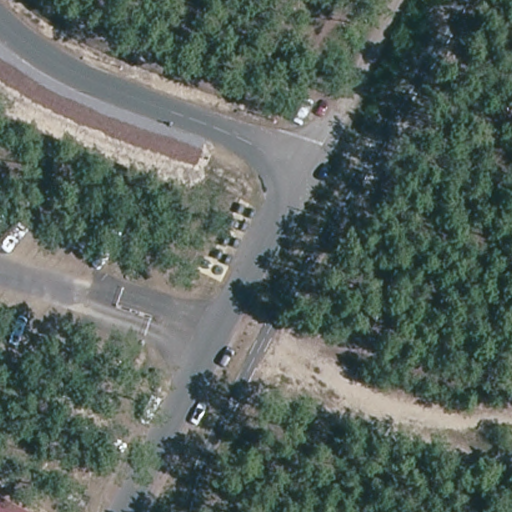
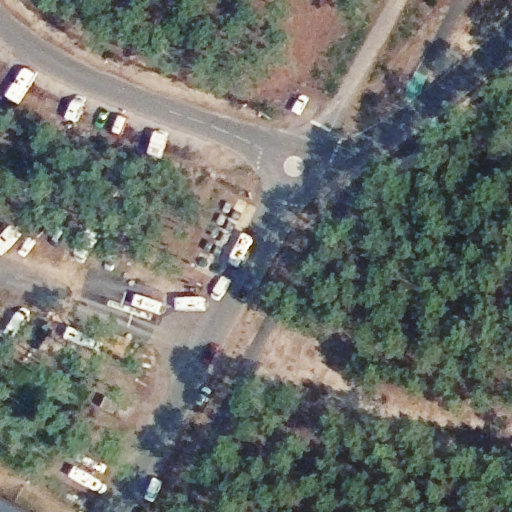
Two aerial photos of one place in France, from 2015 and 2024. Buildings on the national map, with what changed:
unchanged [(0,512),(0,502),(22,512),(0,512)]

